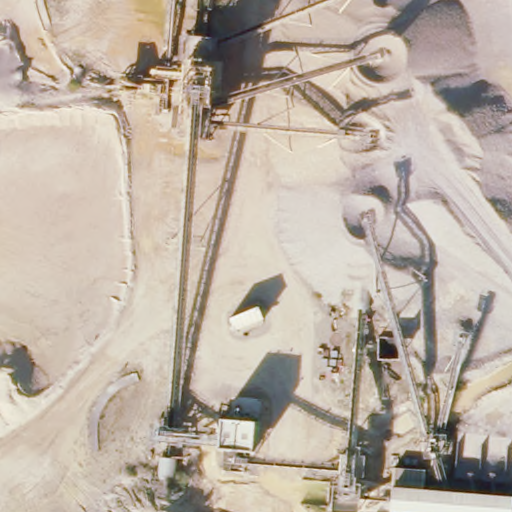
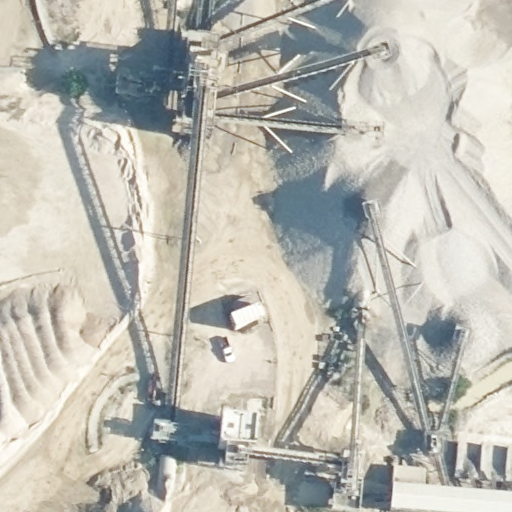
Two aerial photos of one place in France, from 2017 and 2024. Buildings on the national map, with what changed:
unchanged [(392,467),(425,469),(425,490),(512,498),(512,512),(390,512),(392,488),(392,467)]

